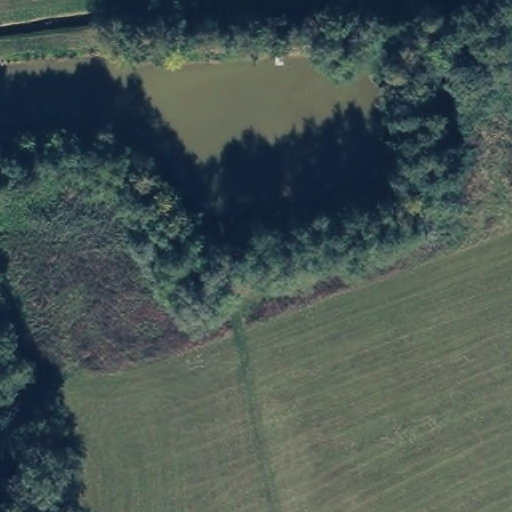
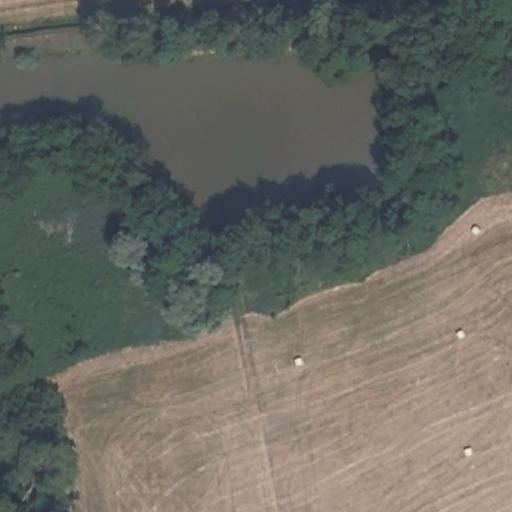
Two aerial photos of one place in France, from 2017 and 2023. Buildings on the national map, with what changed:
unchanged [(419,34),(418,54),(397,53),(398,34),(419,34)]

